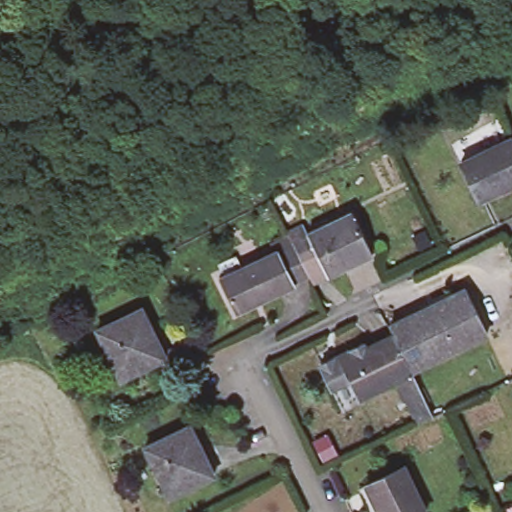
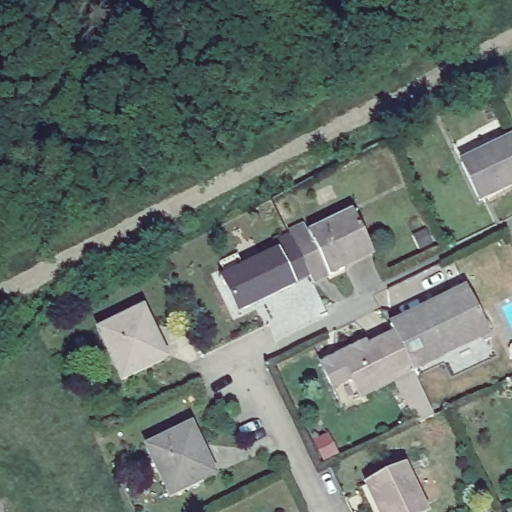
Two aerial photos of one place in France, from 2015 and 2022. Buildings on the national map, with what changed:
unchanged [(467,154),(512,133),(512,178),(485,191),(467,154)]
unchanged [(280,247),(276,239),(293,231),(295,233),(310,226),(315,235),(360,213),(378,251),(350,265),(352,268),(336,276),(335,275),(319,283),(314,275),(300,281),(300,279),(242,308),(225,275),(280,247)]
unchanged [(392,338),(388,329),(465,292),(486,337),(409,373),(392,338)]
unchanged [(117,378),(94,332),(139,310),(147,326),(140,328),(148,344),(154,341),(162,357),(117,378)]
unchanged [(417,427),(406,403),(404,405),(394,383),(358,401),(340,363),(365,352),(392,338),(409,373),(410,376),(420,397),(432,420),(417,427)]
unchanged [(320,365),(362,346),(365,352),(340,363),(358,401),(340,409),(320,365)]
unchanged [(212,474),(167,496),(144,450),(189,427),(197,443),(191,446),(199,462),(205,460),(212,474)]
unchanged [(364,486),(400,467),(423,512),(377,512),(364,486)]

